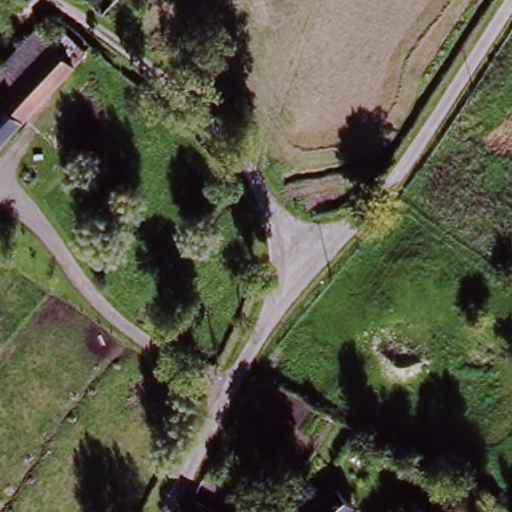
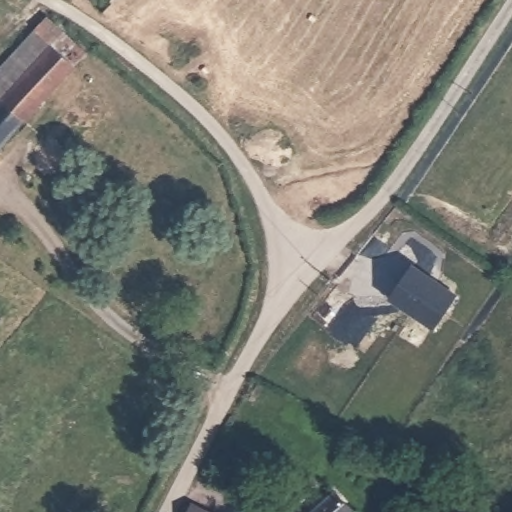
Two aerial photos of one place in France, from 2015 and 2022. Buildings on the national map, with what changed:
unchanged [(99,14),(85,0),(113,0),(99,14)]
unchanged [(51,23),(82,52),(70,64),(75,67),(0,148),(0,102),(24,76),(11,63),(51,23)]
new [(412,267),(460,300),(439,332),(390,300),(412,267)]
unchanged [(356,510),(353,512),(317,512),(340,492),(356,510)]
unchanged [(203,512),(189,512),(192,505),(203,512)]

